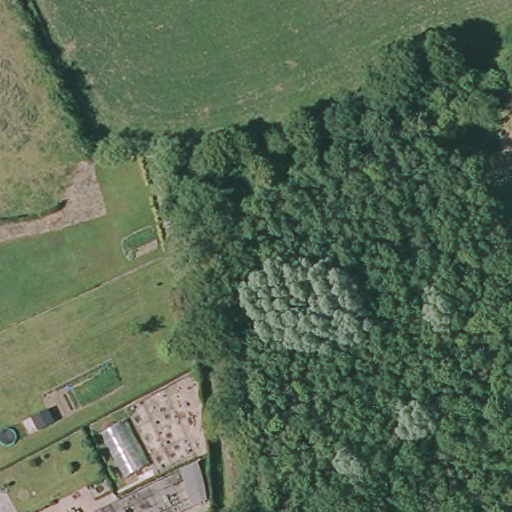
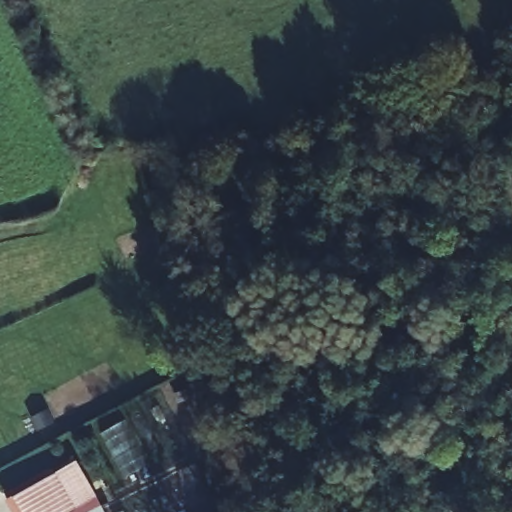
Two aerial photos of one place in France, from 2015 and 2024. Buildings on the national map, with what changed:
new [(79,459),(107,512),(15,512),(7,498),(79,459)]

